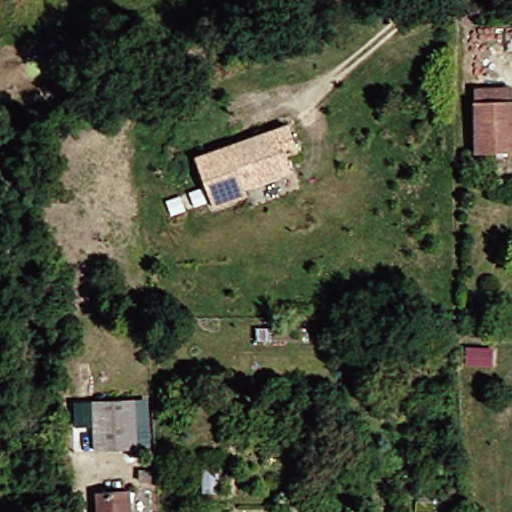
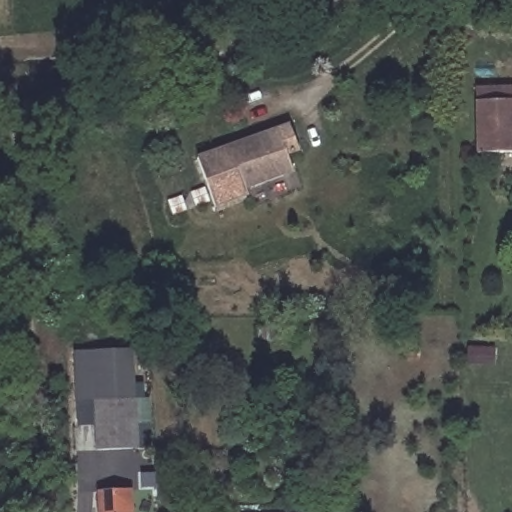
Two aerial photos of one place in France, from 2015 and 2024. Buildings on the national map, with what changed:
unchanged [(478,99),(512,99),(512,150),(477,150),(478,99)]
unchanged [(250,190),(252,195),(216,209),(198,158),(295,120),(308,154),(290,162),(294,173),(250,190)]
new [(134,383),(144,383),(144,399),(100,398),(100,426),(77,427),(73,352),(132,350),(134,383)]
unchanged [(261,401),(262,387),(277,387),(276,402),(261,401)]
unchanged [(144,450),(100,450),(100,398),(144,399),(144,450)]
unchanged [(219,488),(204,488),(204,462),(219,462),(219,488)]
unchanged [(104,512),(104,492),(136,492),(136,512),(104,512)]

